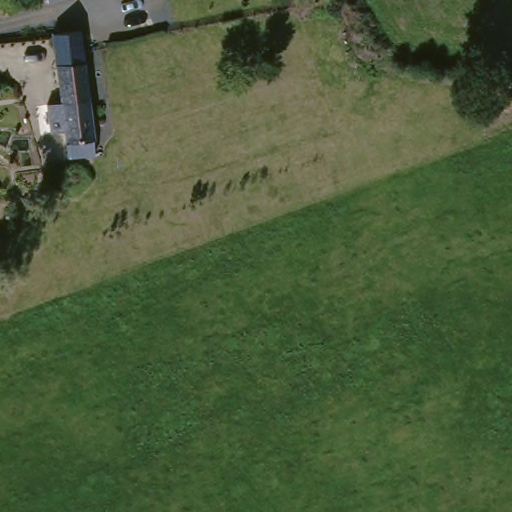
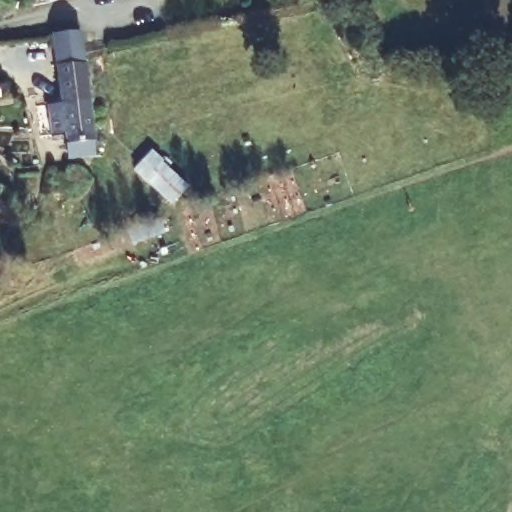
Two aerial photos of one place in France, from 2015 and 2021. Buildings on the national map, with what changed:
unchanged [(36,6),(34,0),(57,0),(47,2),(36,6)]
unchanged [(60,144),(59,135),(43,137),(39,109),(56,105),(47,35),(45,22),(72,19),(74,32),(77,50),(77,57),(89,140),(91,155),(62,160),(60,144)]

